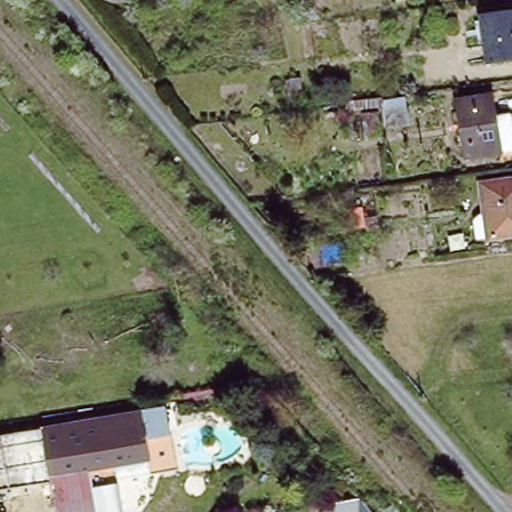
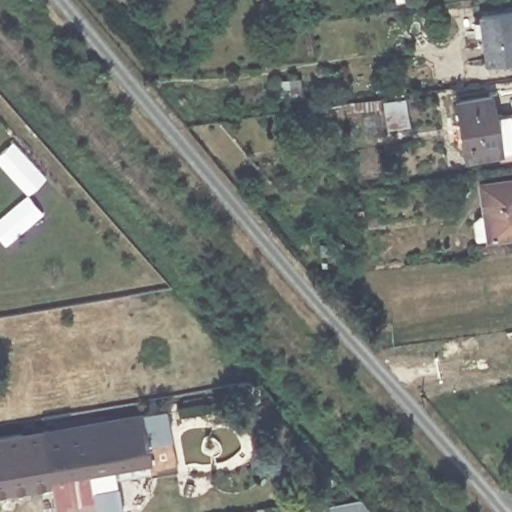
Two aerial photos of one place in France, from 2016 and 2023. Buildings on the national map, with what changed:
unchanged [(512,3),(512,51),(492,54),(485,7),(512,3)]
unchanged [(512,149),(501,151),(502,152),(465,159),(455,102),(490,96),(495,118),(508,116),(512,137),(512,149)]
unchanged [(485,217),(490,216),(485,186),(512,181),(512,237),(494,240),(493,239),(481,241),(478,224),(485,217)]
unchanged [(85,421),(147,412),(155,458),(118,463),(125,506),(100,511),(85,421)]
unchanged [(85,421),(100,511),(92,512),(60,512),(50,457),(45,427),(85,421)]
unchanged [(45,427),(50,457),(43,465),(0,471),(0,434),(45,427)]
unchanged [(319,505),(360,497),(372,512),(320,512),(319,505)]

